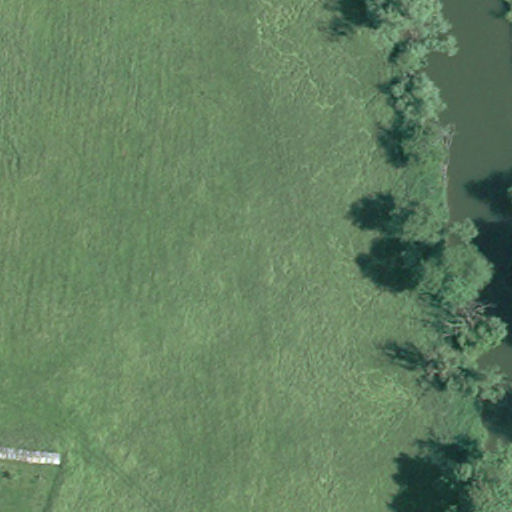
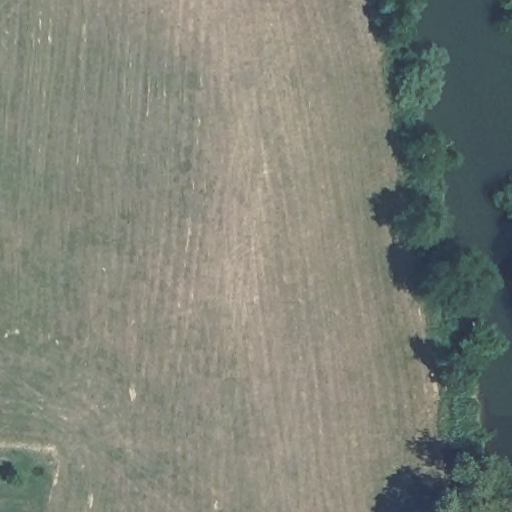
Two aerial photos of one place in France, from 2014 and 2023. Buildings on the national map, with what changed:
[]

